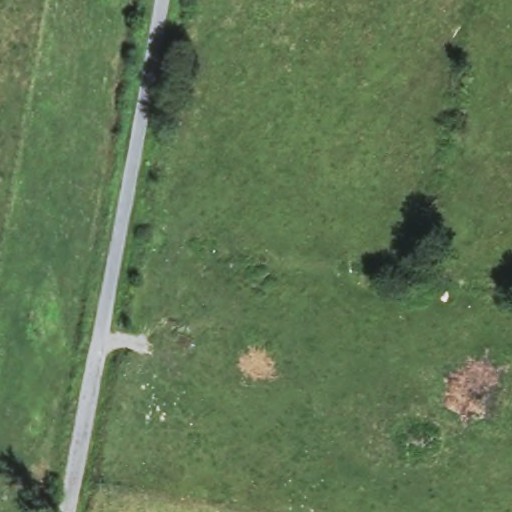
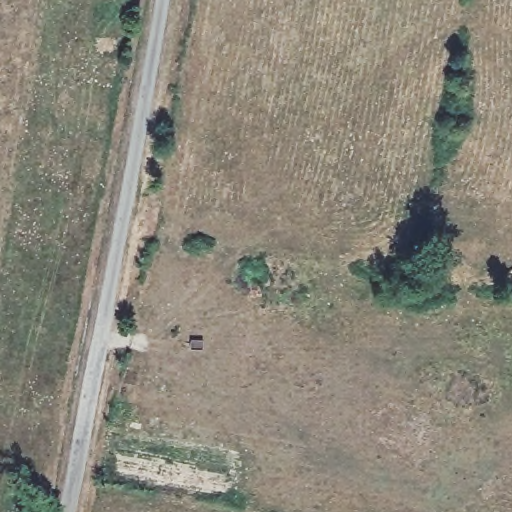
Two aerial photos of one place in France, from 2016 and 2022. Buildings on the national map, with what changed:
[]

